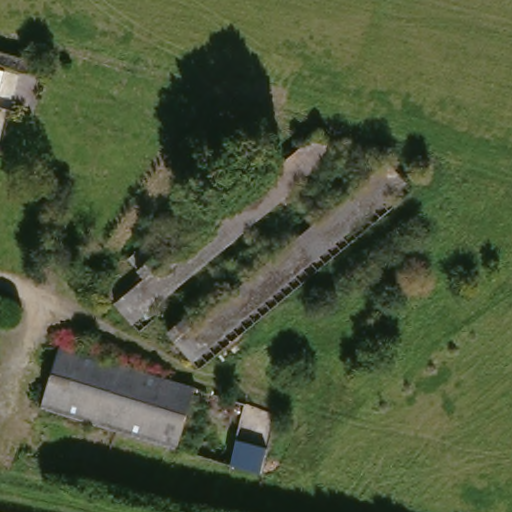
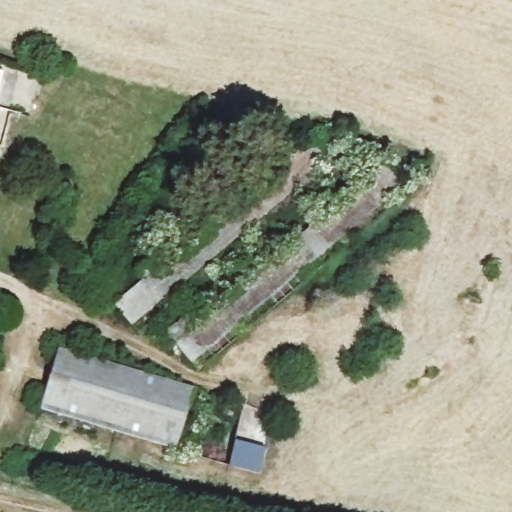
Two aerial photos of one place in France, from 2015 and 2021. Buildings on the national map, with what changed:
unchanged [(315,132),(340,161),(130,337),(121,323),(152,297),(140,280),(315,132)]
unchanged [(385,172),(402,193),(185,370),(169,347),(385,172)]
unchanged [(40,408),(55,348),(193,386),(178,446),(40,408)]
unchanged [(235,439),(267,447),(261,472),(230,465),(235,439)]

